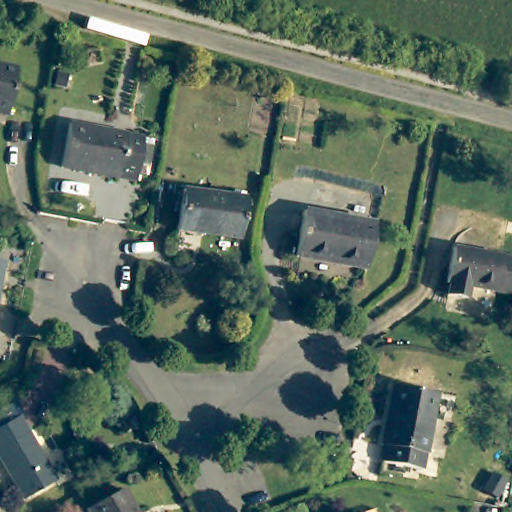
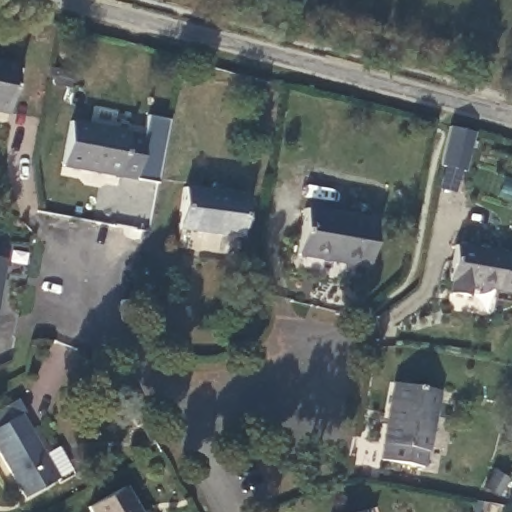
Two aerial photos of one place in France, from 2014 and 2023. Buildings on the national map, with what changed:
unchanged [(16,68),(8,115),(0,113),(0,64),(16,68)]
unchanged [(60,120),(135,132),(127,177),(52,165),(60,120)]
new [(450,126),(474,132),(467,170),(442,165),(450,126)]
unchanged [(185,185),(244,196),(236,237),(178,226),(185,185)]
unchanged [(303,207),(370,217),(364,265),(297,255),(303,207)]
unchanged [(475,283),(473,294),(453,291),(455,279),(452,278),(461,241),(508,253),(512,254),(512,291),(502,289),(475,283)]
unchanged [(4,263),(0,281),(0,262),(4,263)]
unchanged [(390,384),(436,393),(428,454),(425,454),(423,469),(380,463),(383,448),(380,447),(390,384)]
unchanged [(16,411),(57,477),(25,496),(0,456),(0,423),(16,411)]
unchanged [(505,481),(495,499),(481,492),(492,474),(505,481)]
unchanged [(137,512),(91,512),(87,506),(121,485),(137,512)]

